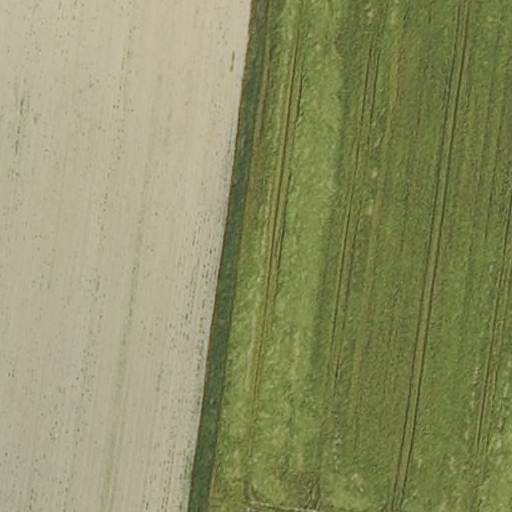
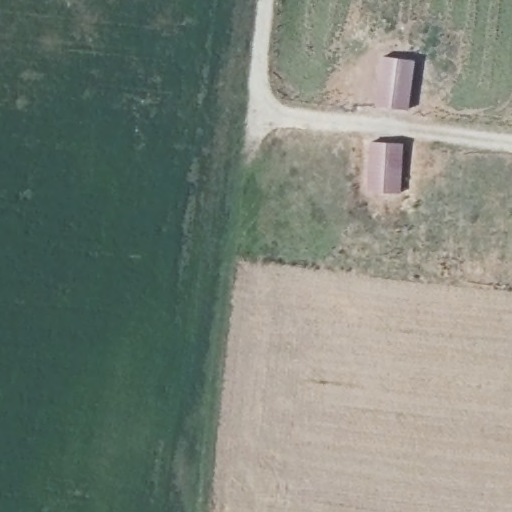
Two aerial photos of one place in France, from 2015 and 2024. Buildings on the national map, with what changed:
new [(379,55),(416,59),(409,110),(374,106),(379,55)]
new [(369,140),(404,142),(401,195),(365,192),(369,140)]

